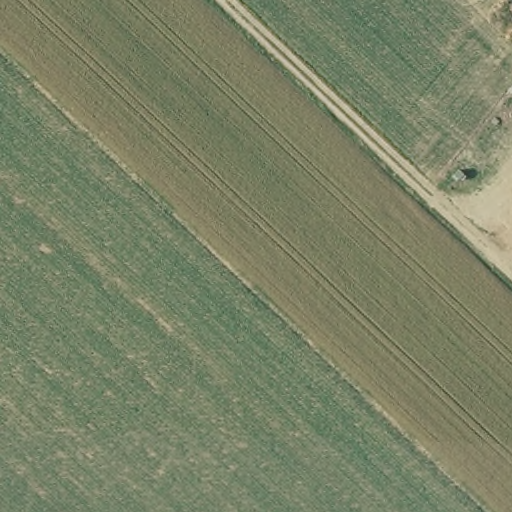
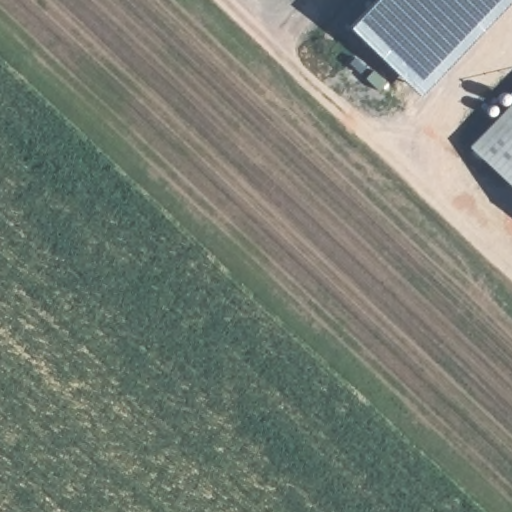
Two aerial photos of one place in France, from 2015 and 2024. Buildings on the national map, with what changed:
new [(344,27),(370,0),(512,0),(512,6),(422,101),(344,27)]
unchanged [(512,102),(512,189),(467,146),(512,102)]

